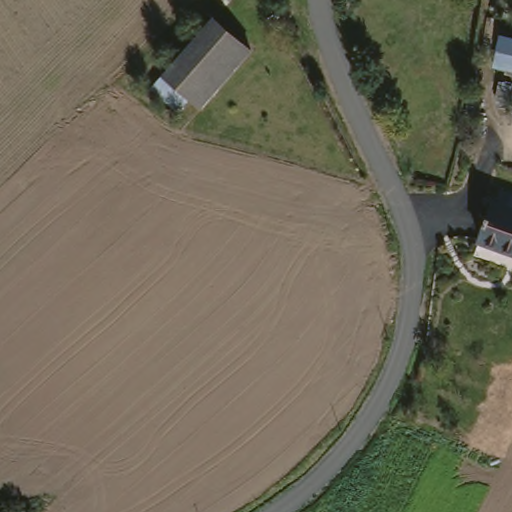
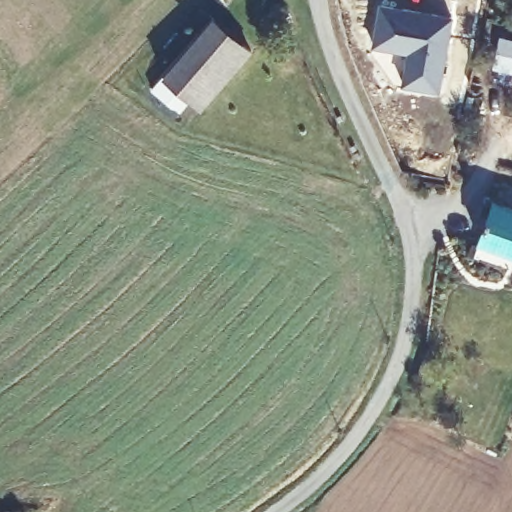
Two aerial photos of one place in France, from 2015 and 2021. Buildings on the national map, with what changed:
new [(407,53),(372,47),(380,3),(455,16),(442,91),(402,85),(407,53)]
unchanged [(159,66),(207,13),(243,47),(195,101),(159,66)]
demolished [(488,27),(512,33),(512,49),(485,42),(488,27)]
new [(500,35),(512,38),(512,73),(492,68),(496,52),(500,35)]
unchanged [(503,193),(512,196),(512,256),(486,246),(503,193)]

